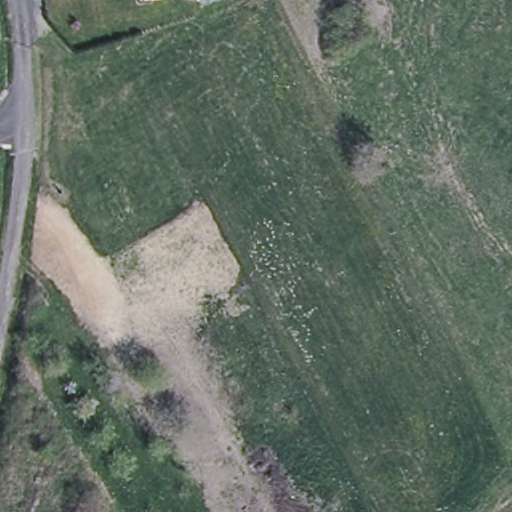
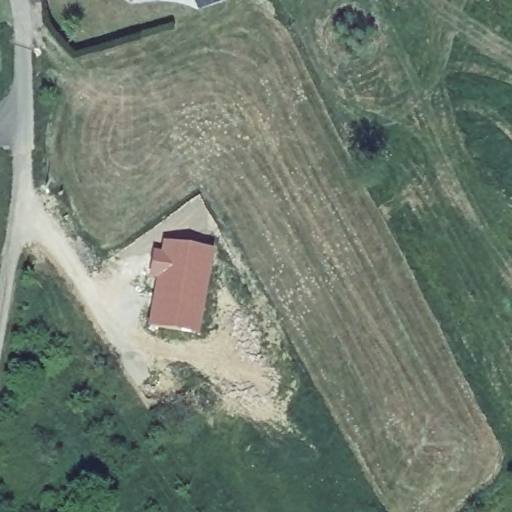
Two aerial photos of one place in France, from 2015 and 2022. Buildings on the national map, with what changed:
new [(200,333),(149,326),(157,277),(150,276),(154,250),(162,250),(164,240),(215,248),(200,333)]

